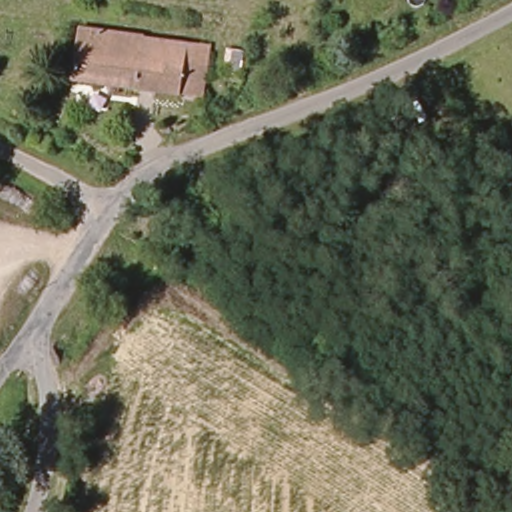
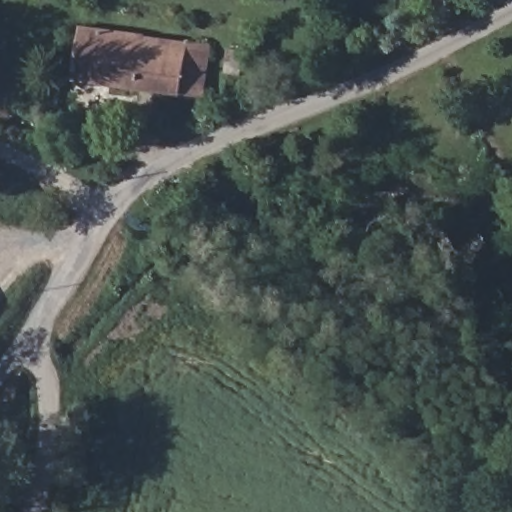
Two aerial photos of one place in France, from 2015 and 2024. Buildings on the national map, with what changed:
unchanged [(115,84),(73,81),(85,32),(119,34),(115,84)]
unchanged [(205,89),(184,88),(115,84),(119,34),(189,39),(209,40),(205,89)]
unchanged [(243,58),(231,57),(231,41),(243,42),(243,58)]
unchanged [(239,81),(227,80),(229,66),(240,67),(239,81)]

